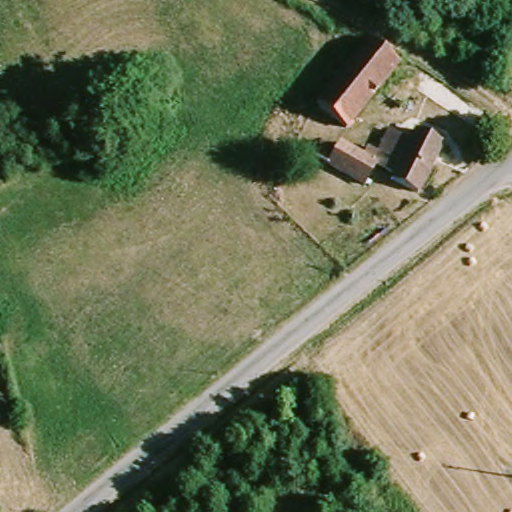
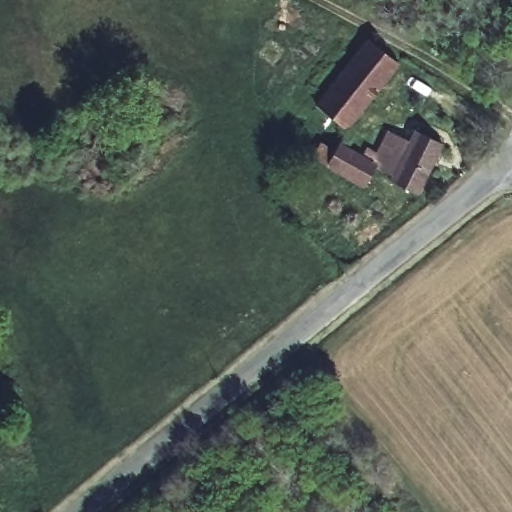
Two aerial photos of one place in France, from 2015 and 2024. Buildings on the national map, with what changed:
unchanged [(347,126),(317,106),(362,36),(392,54),(347,126)]
unchanged [(388,176),(389,174),(370,161),(359,179),(327,161),(312,152),(320,139),(335,148),(339,140),(370,156),(389,126),(408,136),(412,128),(434,140),(410,187),(388,176)]

